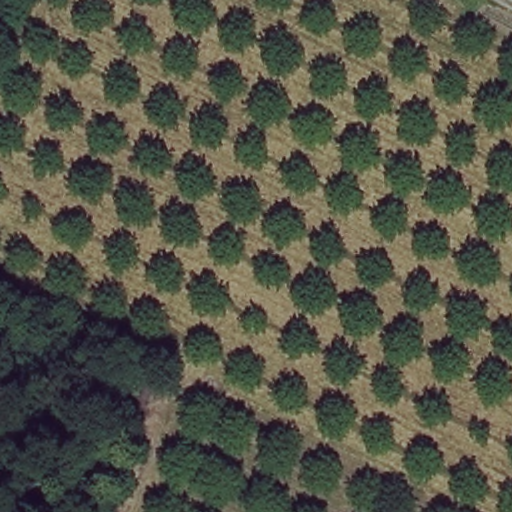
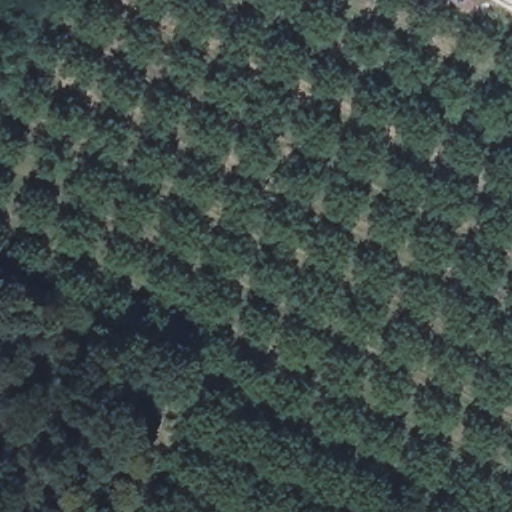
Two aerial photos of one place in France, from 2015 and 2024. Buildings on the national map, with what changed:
[]

